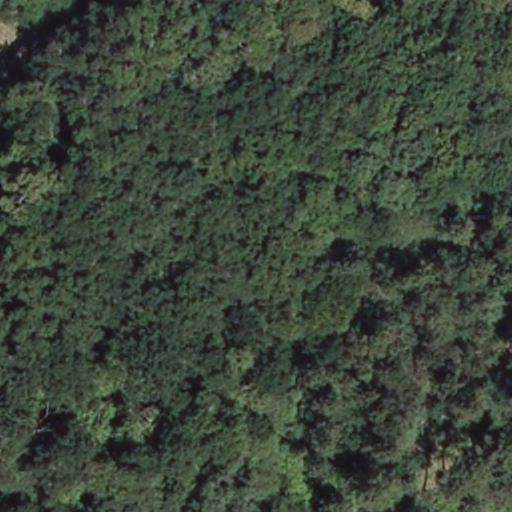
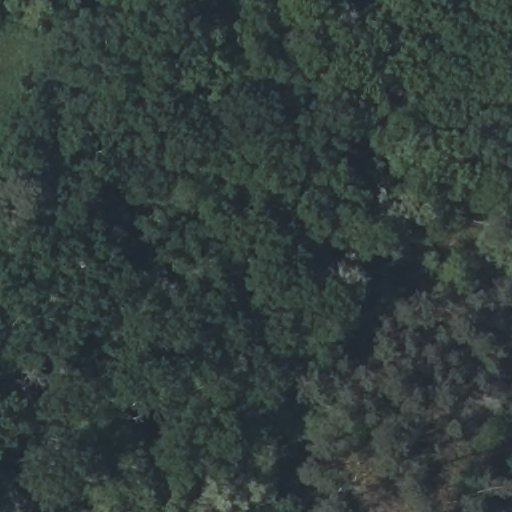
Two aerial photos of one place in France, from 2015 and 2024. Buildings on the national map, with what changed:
[]

